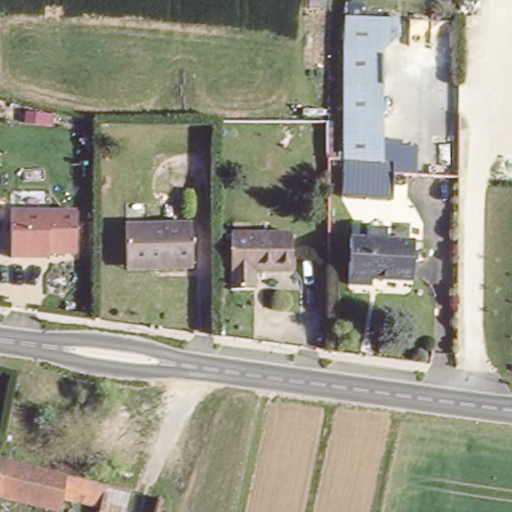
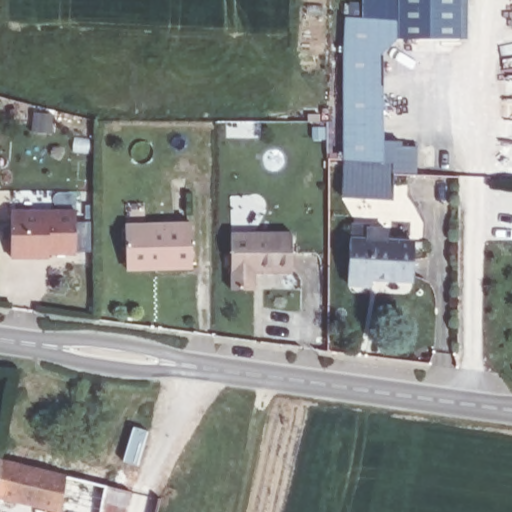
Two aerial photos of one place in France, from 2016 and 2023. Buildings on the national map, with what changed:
new [(364,21),(364,0),(399,0),(399,21),(364,21)]
new [(399,21),(399,0),(467,0),(467,40),(461,39),(399,39),(399,21)]
unchanged [(399,21),(399,39),(386,51),(384,164),(344,164),(346,21),(399,21)]
unchanged [(384,164),(384,139),(418,143),(417,172),(392,172),(392,197),(344,197),(344,164),(384,164)]
unchanged [(47,256),(45,260),(9,261),(6,210),(76,210),(76,256),(47,256)]
unchanged [(125,256),(125,220),(191,221),(190,266),(156,265),(124,265),(125,256)]
unchanged [(387,239),(412,240),(412,279),(371,279),(371,286),(349,286),(349,239),(349,227),(366,227),(387,227),(387,239)]
unchanged [(291,231),(291,271),(254,271),(254,290),(231,290),(231,231),(291,231)]
unchanged [(0,488),(0,456),(7,457),(0,488)]
unchanged [(67,499),(65,507),(0,495),(0,488),(7,457),(73,471),(67,499)]
unchanged [(117,479),(109,507),(67,499),(73,471),(117,479)]

